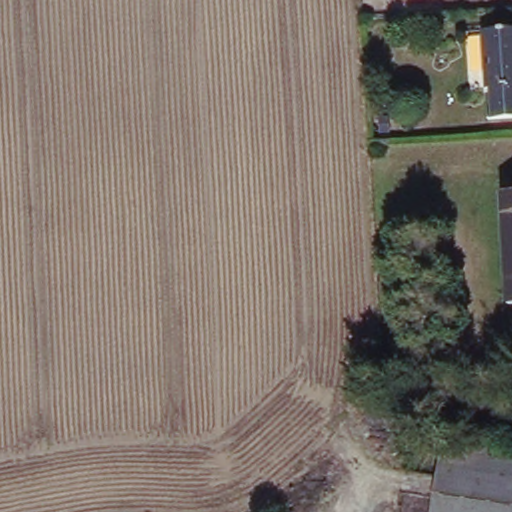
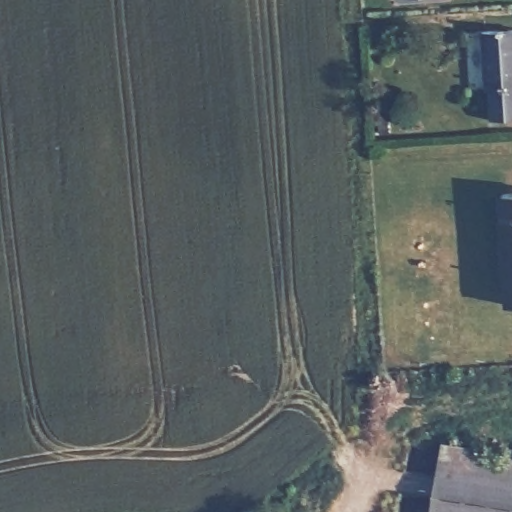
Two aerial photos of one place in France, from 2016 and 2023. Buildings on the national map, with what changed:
unchanged [(512,26),(512,113),(490,114),(489,84),(486,84),(483,27),(512,26)]
unchanged [(512,189),(512,300),(510,300),(506,189),(512,189)]
unchanged [(449,441),(512,451),(512,512),(437,512),(441,484),(449,441)]

